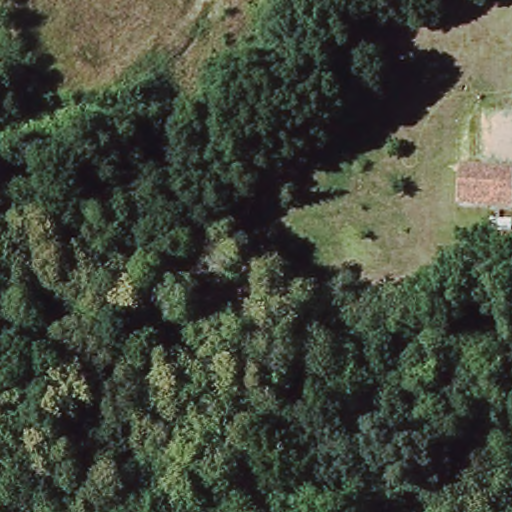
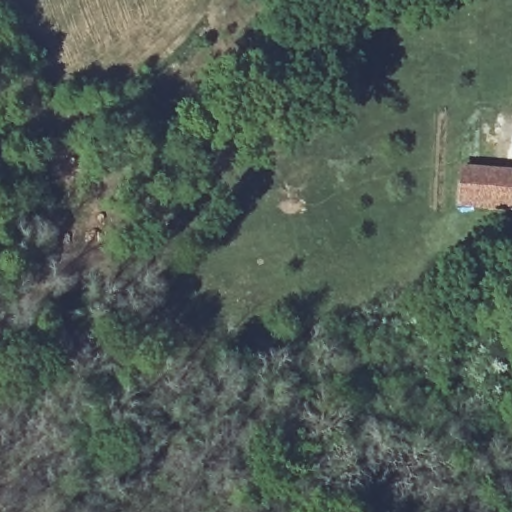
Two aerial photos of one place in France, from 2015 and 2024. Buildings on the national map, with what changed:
unchanged [(512,210),(457,206),(460,167),(512,169),(512,210)]

